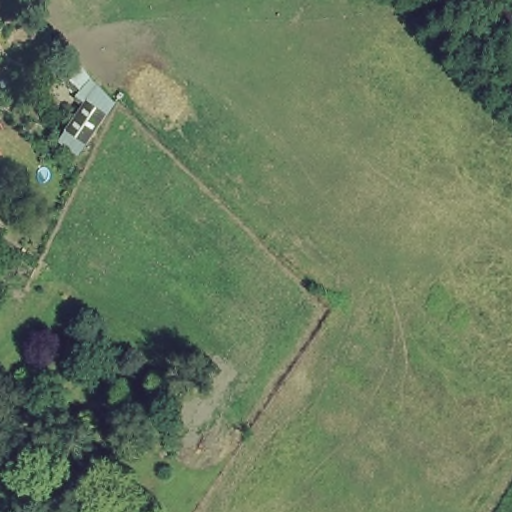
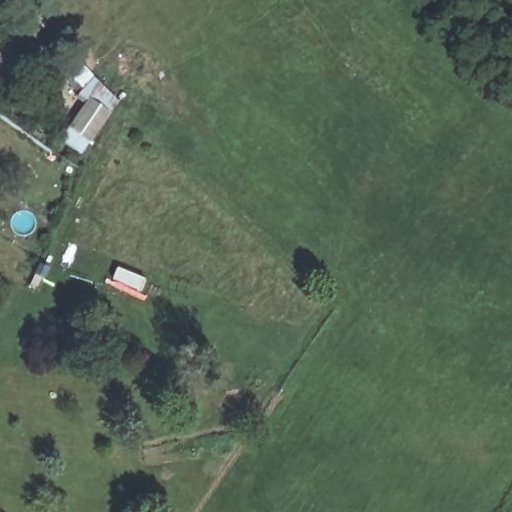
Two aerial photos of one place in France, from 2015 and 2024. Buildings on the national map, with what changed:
unchanged [(120,104),(87,139),(94,144),(87,156),(65,140),(94,102),(73,83),(87,67),(120,104)]

